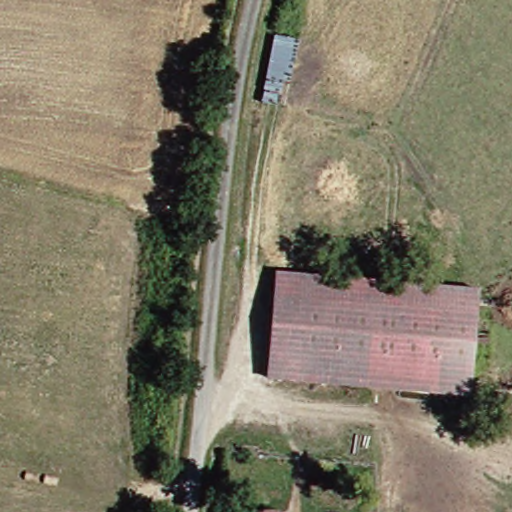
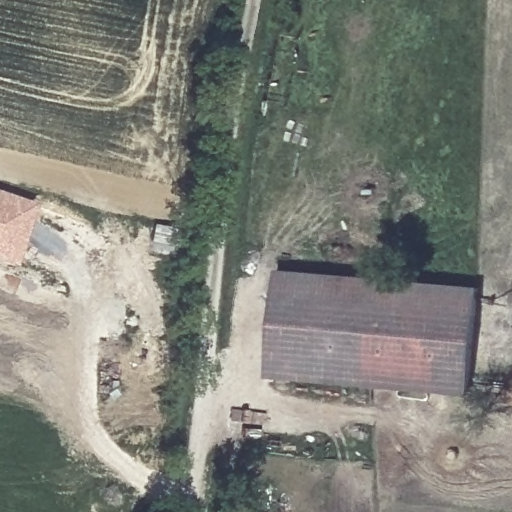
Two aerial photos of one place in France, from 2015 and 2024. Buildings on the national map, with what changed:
new [(0,260),(0,191),(38,203),(15,265),(0,260)]
unchanged [(269,322),(275,268),(482,288),(477,342),(269,322)]
unchanged [(473,369),(267,350),(269,322),(477,342),(473,369)]
unchanged [(473,369),(471,396),(262,377),(267,350),(473,369)]

